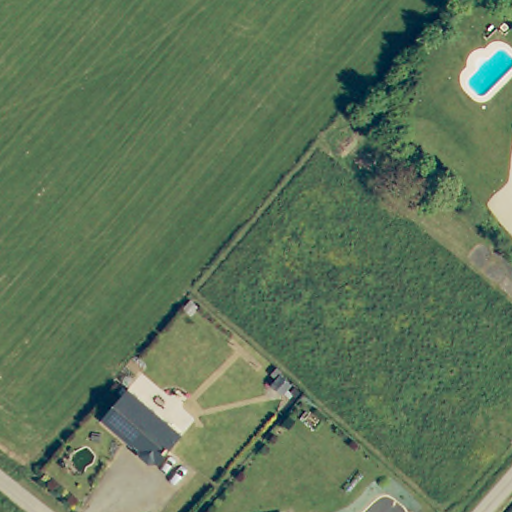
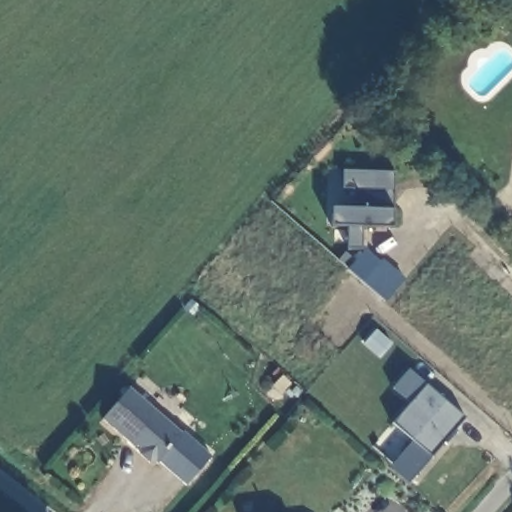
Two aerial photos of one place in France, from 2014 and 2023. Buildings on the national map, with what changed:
new [(393,210),(392,228),(365,227),(362,247),(348,246),(350,227),(331,225),(331,207),(355,207),(355,189),(342,187),(343,171),(396,173),(393,210)]
new [(385,302),(348,268),(366,248),(381,261),(383,258),(405,277),(385,302)]
new [(408,485),(390,467),(412,441),(393,422),(409,403),(393,388),(409,370),(466,418),(408,485)]
unchanged [(156,463),(151,465),(143,460),(143,452),(131,442),(130,443),(104,423),(130,391),(185,436),(160,466),(156,463)]
new [(186,487),(160,466),(185,436),(212,456),(186,487)]
unchanged [(288,511),(288,512),(278,512),(288,511)]

